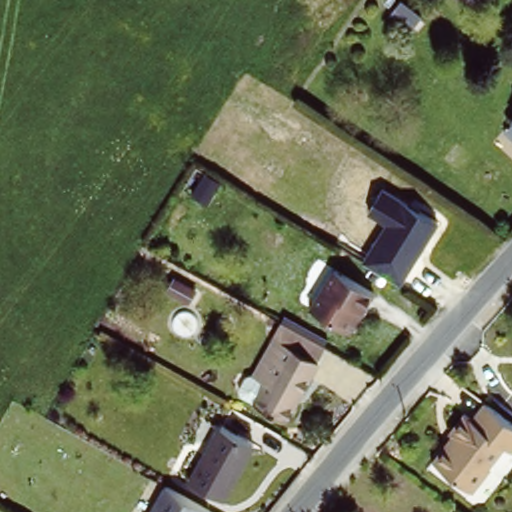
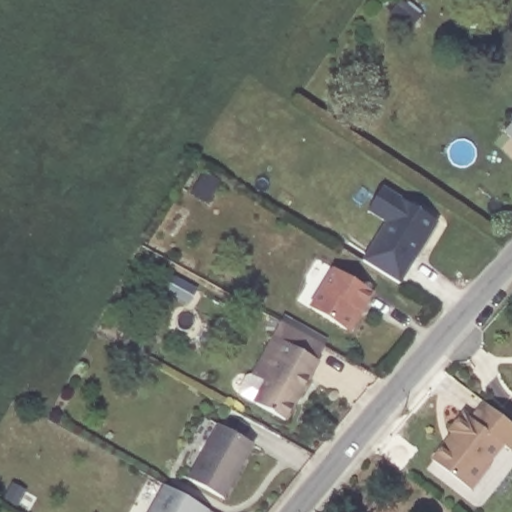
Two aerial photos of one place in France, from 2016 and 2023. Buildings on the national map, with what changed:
unchanged [(505,116),(512,109),(512,122),(505,116)]
unchanged [(363,259),(385,219),(369,210),(383,187),(438,218),(403,282),(363,259)]
unchanged [(367,291),(357,309),(361,311),(349,331),(307,308),(328,269),(367,291)]
unchanged [(198,295),(193,306),(167,292),(173,281),(198,295)]
unchanged [(241,396),(253,373),(260,377),(278,341),(287,325),(331,349),(323,364),(291,423),(241,396)]
unchanged [(510,457),(502,450),(485,472),(487,474),(471,496),(437,469),(451,452),(453,453),(461,444),(451,435),(465,418),(472,424),(485,410),(512,431),(512,455),(510,457)]
unchanged [(257,445),(228,498),(194,479),(223,426),(257,445)]
unchanged [(208,504),(203,512),(145,512),(164,479),(208,504)]

